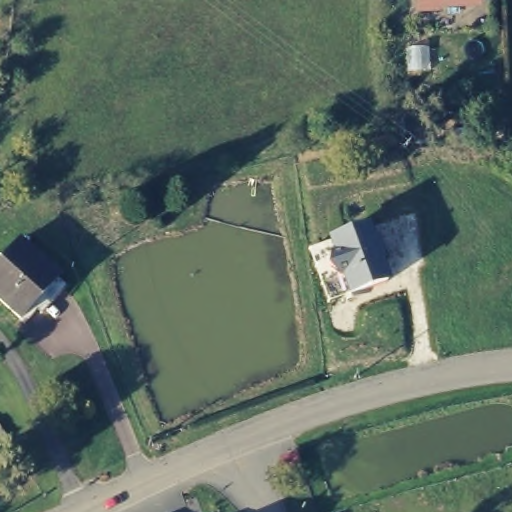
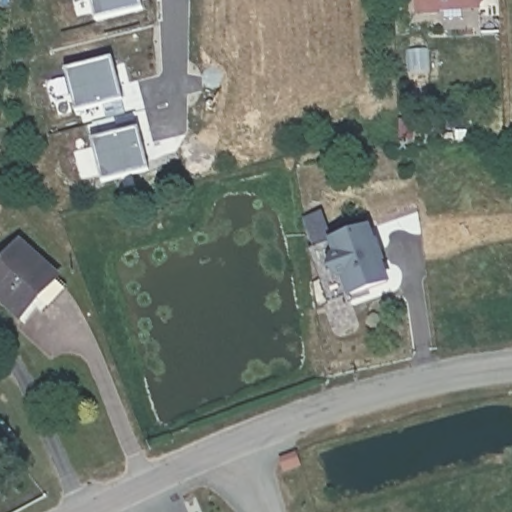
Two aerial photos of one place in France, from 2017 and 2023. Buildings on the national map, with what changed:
new [(96,19),(91,0),(140,0),(142,9),(96,19)]
unchanged [(445,1),(445,7),(422,7),(422,0),(483,0),(445,1)]
new [(77,111),(66,71),(111,58),(122,99),(77,111)]
new [(93,140),(138,128),(148,169),(104,181),(93,140)]
unchanged [(330,304),(310,249),(330,241),(371,226),(390,286),(349,299),(330,304)]
unchanged [(19,239),(56,274),(18,312),(0,297),(0,258),(19,239)]

